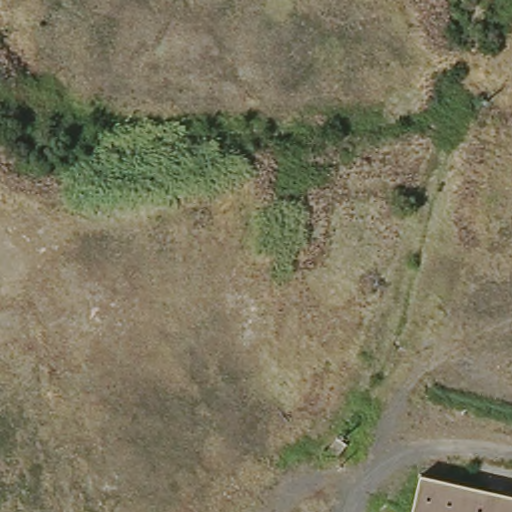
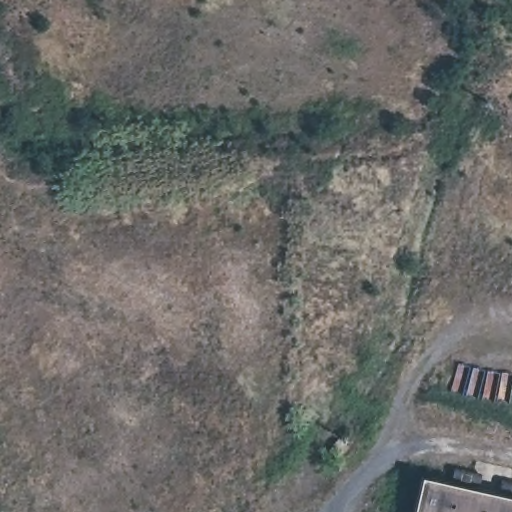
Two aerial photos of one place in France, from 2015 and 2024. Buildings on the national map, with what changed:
unchanged [(424,509),(430,474),(512,494),(512,512),(423,512),(424,509)]
unchanged [(424,509),(423,512),(394,512),(397,501),(424,509)]

